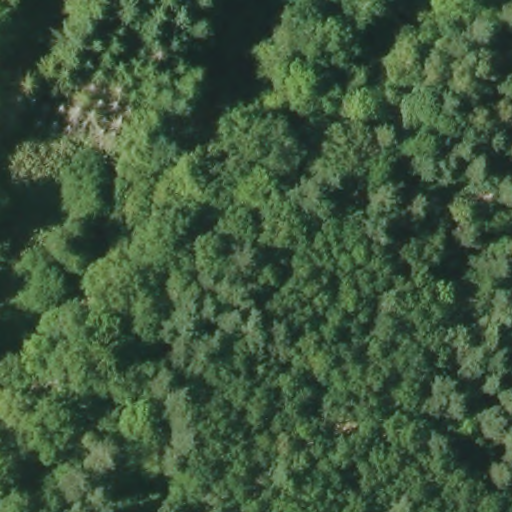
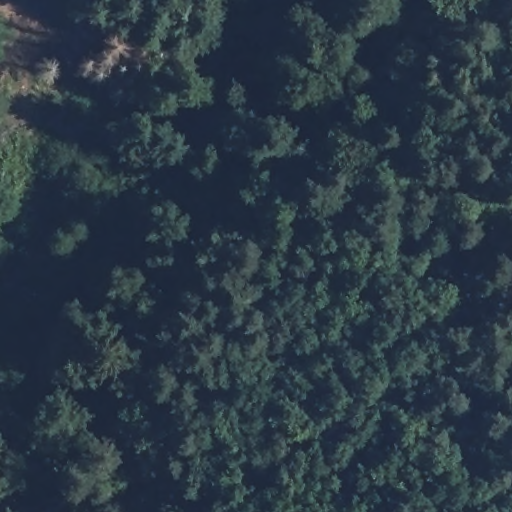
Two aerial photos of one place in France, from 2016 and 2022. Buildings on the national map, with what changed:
[]

